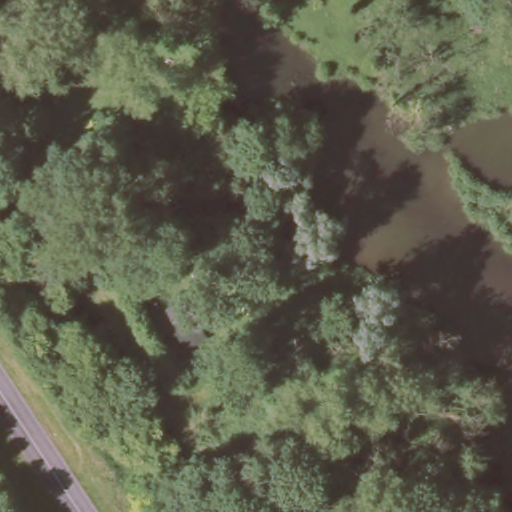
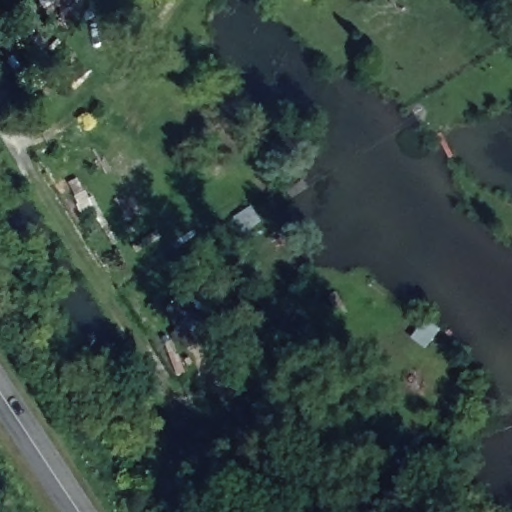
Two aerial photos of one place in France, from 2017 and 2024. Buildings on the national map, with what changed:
unchanged [(173,408),(161,384),(181,372),(196,397),(173,408)]

